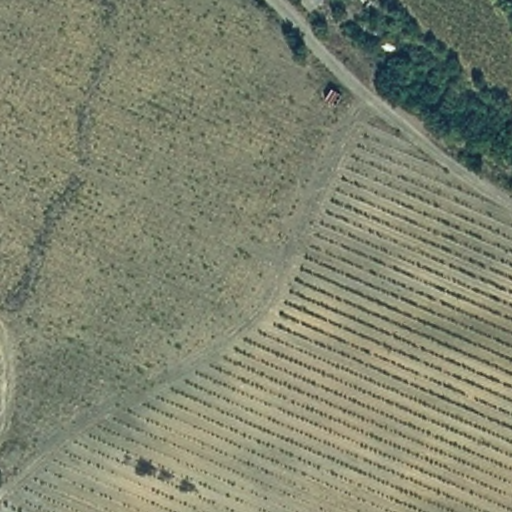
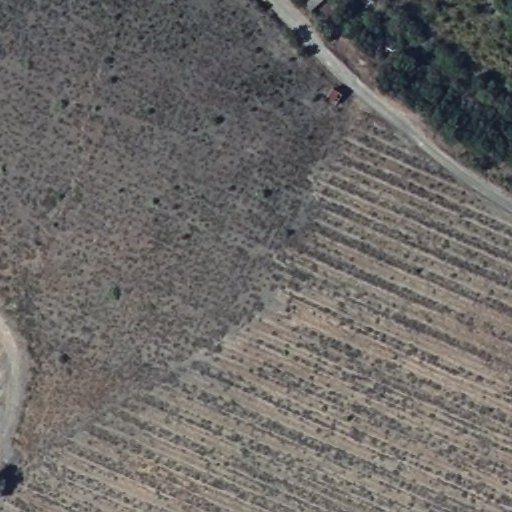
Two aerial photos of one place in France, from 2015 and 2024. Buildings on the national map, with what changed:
unchanged [(310,15),(297,0),(329,0),(329,1),(310,15)]

